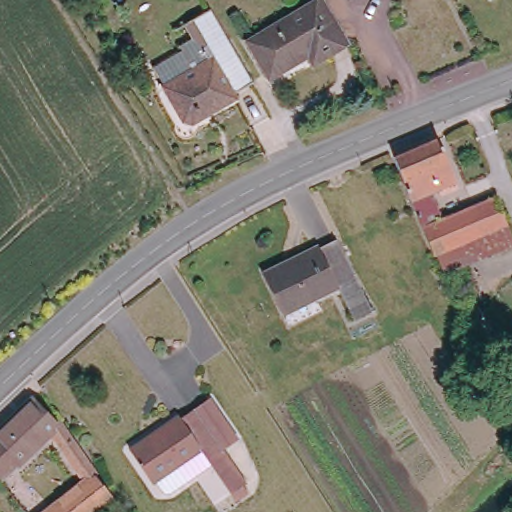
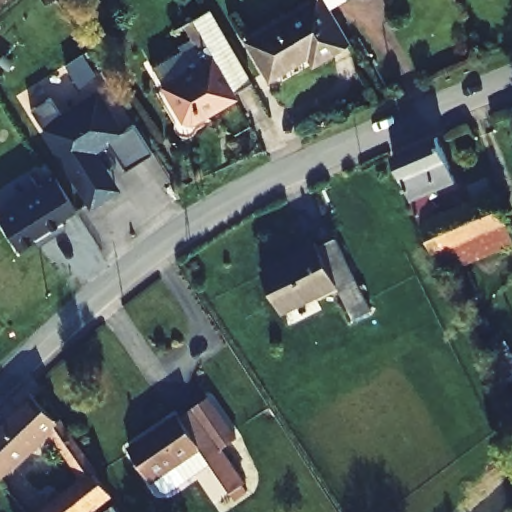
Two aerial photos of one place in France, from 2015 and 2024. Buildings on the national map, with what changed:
unchanged [(247,31),(300,0),(325,0),(332,13),(258,54),(247,31)]
unchanged [(223,23),(236,45),(256,79),(251,82),(254,89),(239,97),(242,104),(203,126),(188,120),(158,68),(185,51),(185,45),(202,35),(206,19),(216,12),(223,23)]
unchanged [(319,66),(312,56),(272,79),(266,68),(258,54),(332,13),(352,48),(319,66)]
new [(97,151),(120,190),(90,210),(41,130),(43,129),(32,110),(51,99),(60,114),(99,89),(125,131),(135,124),(152,153),(125,169),(110,144),(97,151)]
unchanged [(433,249),(417,208),(395,151),(441,136),(459,181),(432,193),(442,217),(498,193),(512,223),(512,241),(449,269),(439,248),(433,249)]
new [(0,220),(0,211),(57,176),(77,210),(63,220),(68,229),(40,247),(38,242),(21,253),(0,220)]
unchanged [(355,317),(340,283),(286,309),(271,277),(307,260),(303,251),(343,234),(357,268),(357,272),(375,309),(355,317)]
unchanged [(212,461),(208,464),(198,447),(190,435),(177,443),(163,421),(182,407),(185,409),(197,402),(214,392),(242,431),(223,441),(229,449),(247,478),(230,489),(212,461)]
unchanged [(87,484),(50,433),(12,465),(0,475),(0,429),(34,402),(50,421),(59,415),(115,498),(93,512),(45,512),(87,484)]
unchanged [(154,474),(132,443),(163,421),(177,443),(190,435),(198,447),(154,474)]

